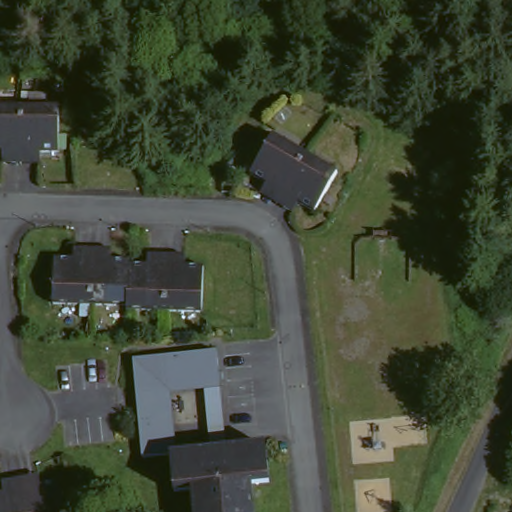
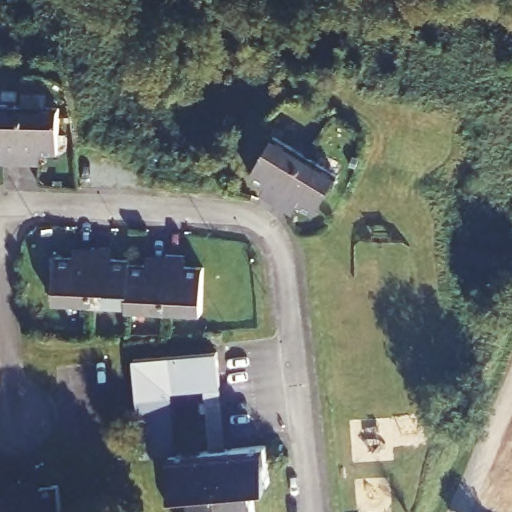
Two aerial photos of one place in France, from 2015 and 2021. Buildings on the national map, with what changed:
unchanged [(4,165),(4,154),(0,154),(0,107),(59,106),(59,154),(41,154),(41,165),(4,165)]
unchanged [(274,200),(259,191),(264,184),(249,174),(274,133),(336,172),(311,212),(297,203),(292,211),(274,200)]
unchanged [(151,248),(187,249),(186,261),(206,262),(206,264),(204,310),(129,308),(129,304),(56,302),(57,257),(79,258),(79,246),(89,246),(113,247),(113,260),(150,261),(151,248)]
unchanged [(141,453),(133,356),(220,347),(231,445),(211,445),(204,387),(174,391),(178,449),(141,453)]
unchanged [(273,495),(258,495),(260,512),(194,512),(193,496),(177,497),(171,453),(268,446),(273,495)]
unchanged [(62,512),(0,512),(0,494),(1,494),(0,486),(0,482),(9,481),(34,477),(37,488),(59,484),(62,512)]

